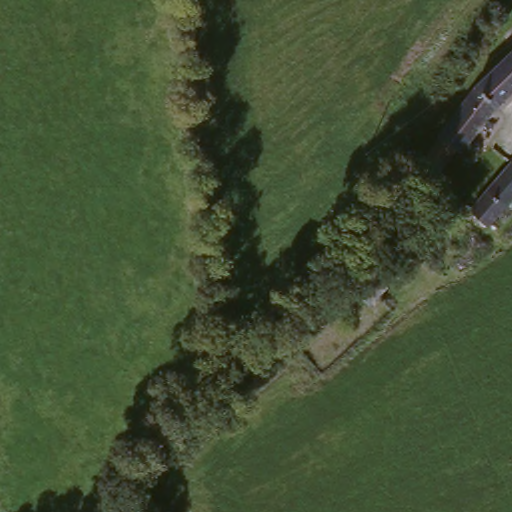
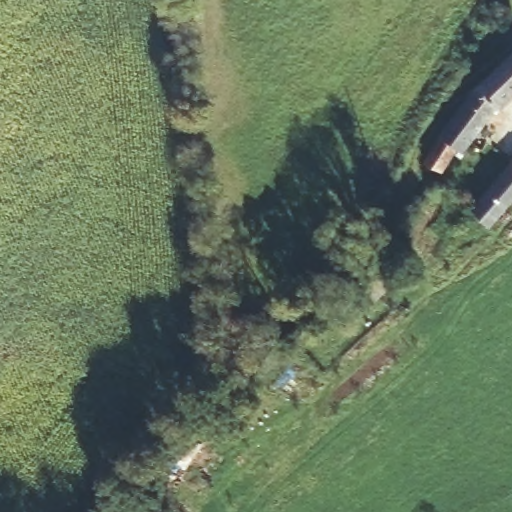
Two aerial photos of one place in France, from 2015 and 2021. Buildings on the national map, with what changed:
unchanged [(439,126),(512,49),(512,92),(461,149),(453,145),(439,161),(426,152),(439,126)]
unchanged [(512,169),(512,210),(496,231),(473,211),(512,169)]

